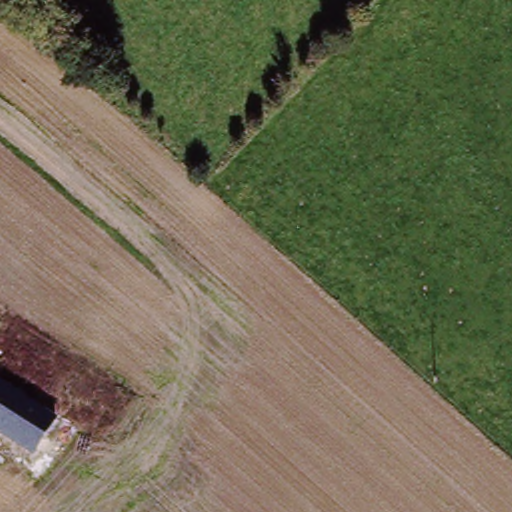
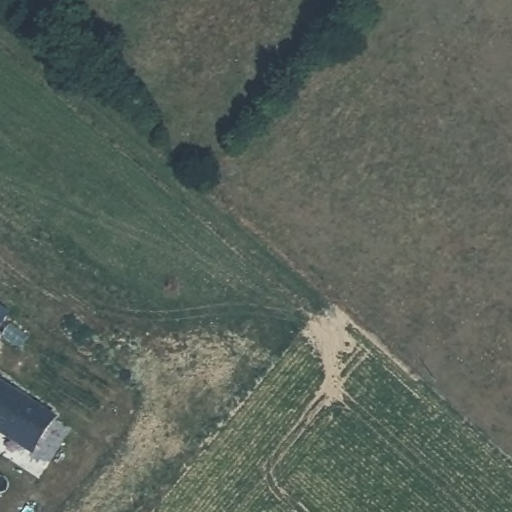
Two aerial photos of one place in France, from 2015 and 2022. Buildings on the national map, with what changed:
unchanged [(35,455),(0,431),(0,383),(60,421),(35,455)]

